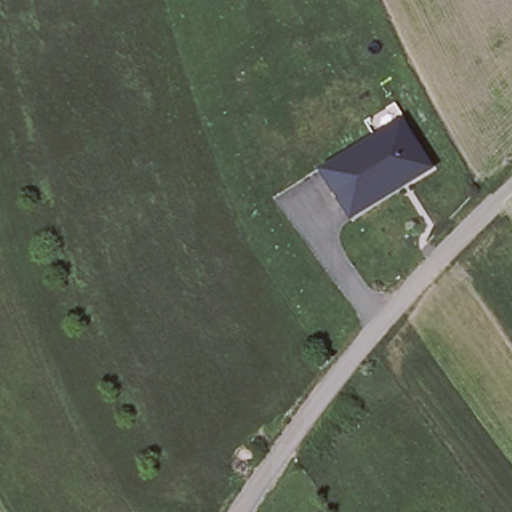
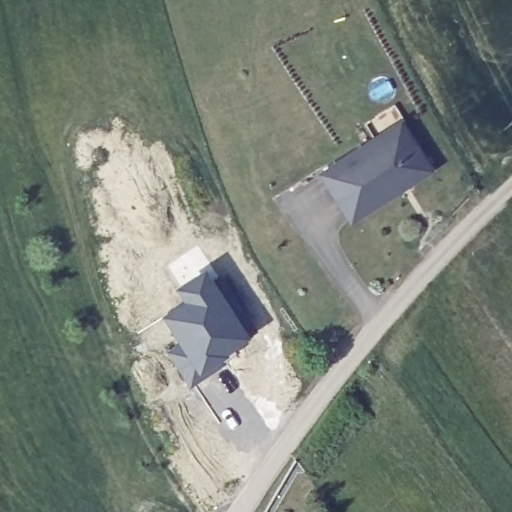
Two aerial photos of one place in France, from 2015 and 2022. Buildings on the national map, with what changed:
unchanged [(352,223),(322,176),(375,143),(365,128),(396,109),(406,126),(403,128),(431,173),(352,223)]
new [(252,340),(188,382),(168,351),(179,343),(164,318),(186,301),(181,290),(206,272),(252,340)]

